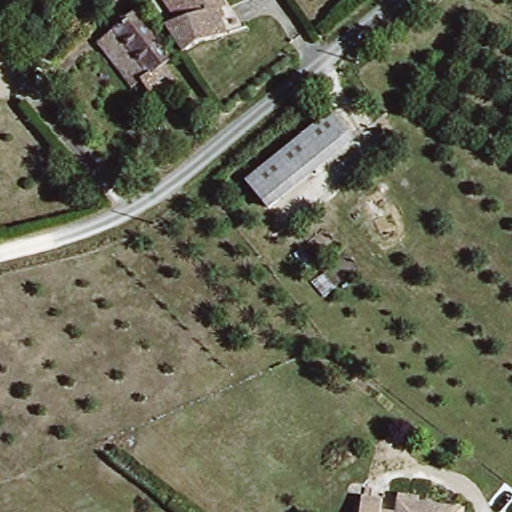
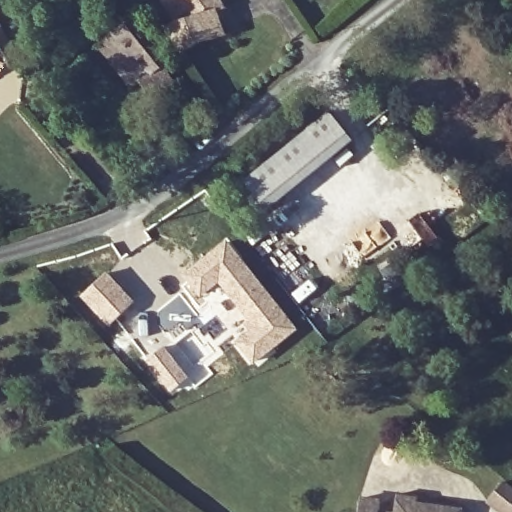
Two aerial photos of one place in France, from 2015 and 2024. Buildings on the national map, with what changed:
unchanged [(184,7),(180,0),(224,0),(224,1),(217,6),(224,27),(177,43),(161,18),(184,7)]
unchanged [(134,4),(172,49),(163,57),(179,76),(170,84),(177,92),(164,103),(139,73),(144,68),(109,25),(134,4)]
unchanged [(139,73),(130,80),(94,38),(109,25),(144,68),(139,73)]
unchanged [(0,65),(0,55),(4,62),(0,65)]
unchanged [(326,112),(347,139),(280,193),(264,206),(242,178),(259,164),(326,112)]
new [(225,237),(298,329),(252,365),(232,341),(248,325),(218,285),(201,299),(180,274),(225,237)]
new [(106,271),(134,301),(109,326),(79,296),(106,271)]
new [(499,512),(487,502),(504,480),(512,487),(512,512),(499,512)]
unchanged [(414,498),(413,501),(459,510),(459,512),(389,512),(393,494),(414,498)]
unchanged [(376,501),(374,512),(354,512),(357,498),(376,501)]

